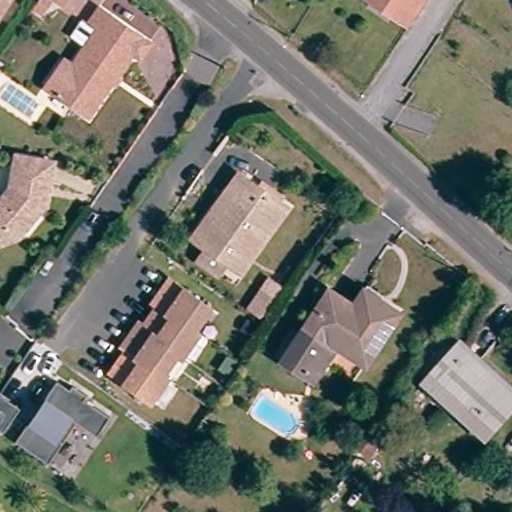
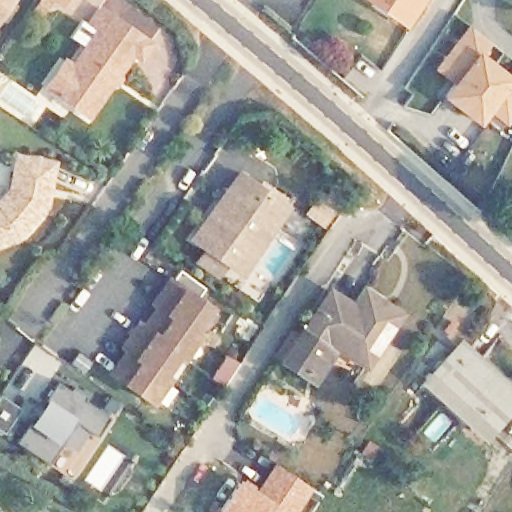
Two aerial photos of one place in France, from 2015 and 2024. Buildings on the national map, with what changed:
unchanged [(66,27),(77,10),(85,15),(94,0),(98,0),(146,32),(136,47),(128,42),(85,106),(50,83),(42,78),(60,50),(68,56),(80,36),(66,27)]
unchanged [(52,0),(58,0),(56,3),(52,0)]
unchanged [(374,0),(414,0),(402,18),(374,0)]
new [(492,41),(482,53),(509,73),(512,70),(512,119),(506,125),(489,110),(477,124),(441,97),(455,80),(435,68),(469,23),(492,41)]
unchanged [(0,237),(0,188),(4,183),(10,150),(47,157),(39,200),(10,233),(0,237)]
unchanged [(188,250),(197,237),(184,227),(199,207),(206,197),(230,164),(275,197),(230,261),(216,251),(206,264),(188,250)]
unchanged [(115,340),(120,334),(124,329),(132,317),(136,320),(139,316),(144,310),(151,299),(147,296),(151,290),(155,285),(164,273),(203,301),(186,325),(190,328),(174,350),(170,347),(155,368),(159,371),(142,394),(103,366),(107,360),(111,354),(120,343),(115,340)]
unchanged [(300,376),(280,365),(297,336),(323,293),(348,308),(358,291),(362,284),(372,290),(400,307),(386,331),(363,367),(330,347),(309,382),(300,376)]
unchanged [(512,394),(512,399),(480,435),(417,378),(445,347),(454,356),(462,347),(512,394)]
unchanged [(54,435),(60,439),(45,460),(12,437),(22,422),(27,426),(35,414),(32,412),(39,403),(42,405),(46,399),(40,395),(54,376),(67,386),(70,382),(85,392),(82,396),(107,413),(94,432),(67,414),(54,435)]
unchanged [(0,393),(17,404),(0,429),(0,393)]
new [(240,476),(254,487),(275,462),(313,489),(297,512),(211,512),(240,476)]

